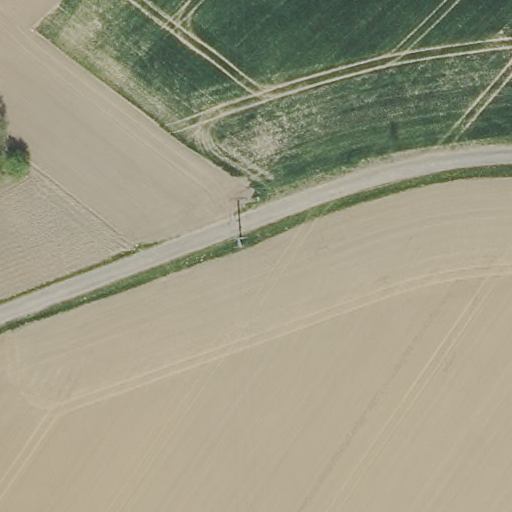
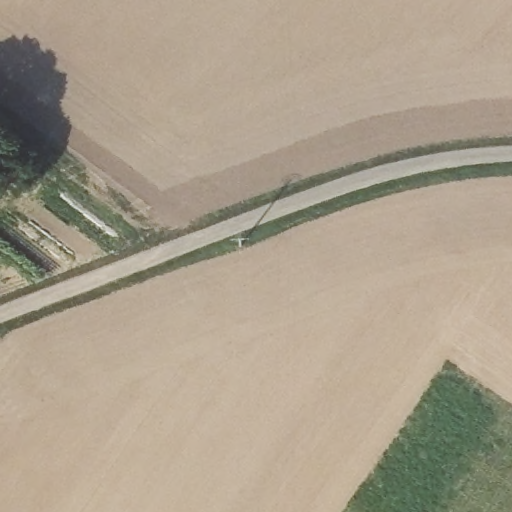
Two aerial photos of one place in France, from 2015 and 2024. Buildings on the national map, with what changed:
[]

